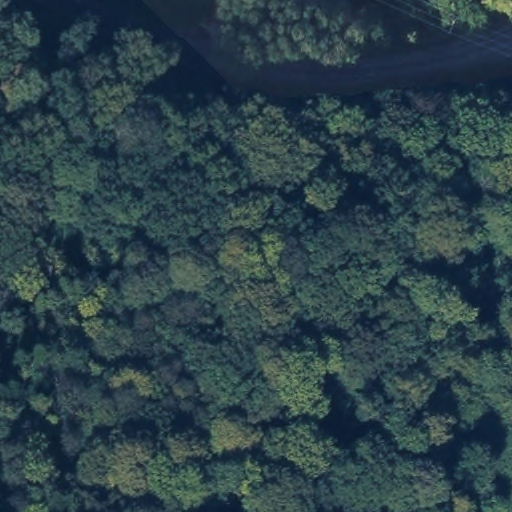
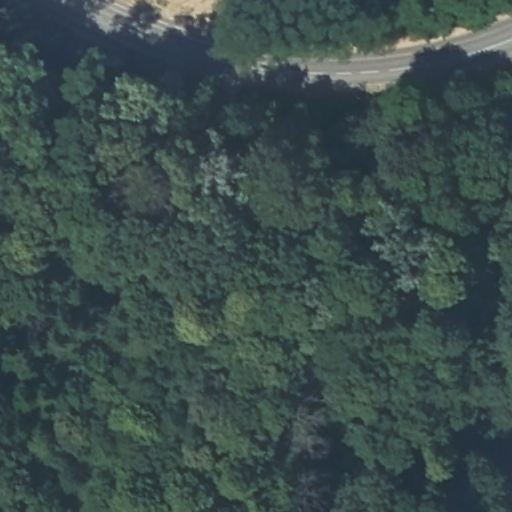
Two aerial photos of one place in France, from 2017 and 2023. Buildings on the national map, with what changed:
[]

